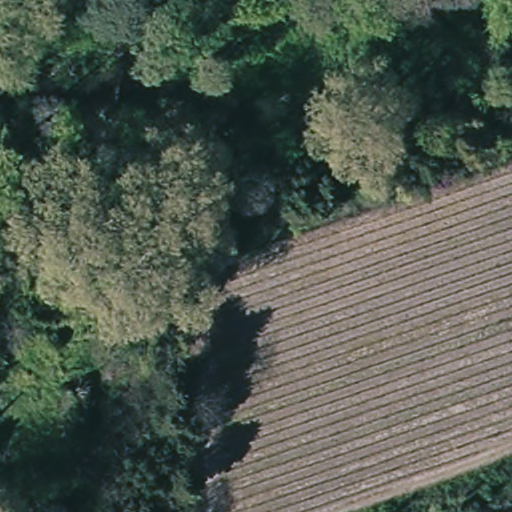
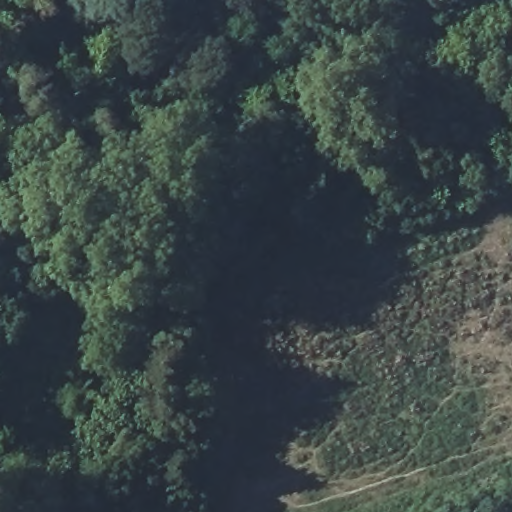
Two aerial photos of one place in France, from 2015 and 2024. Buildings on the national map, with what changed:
unchanged [(96,437),(72,442),(66,392),(93,390),(96,437)]

